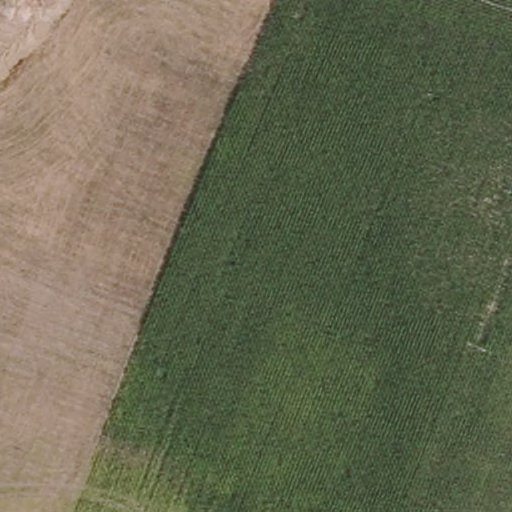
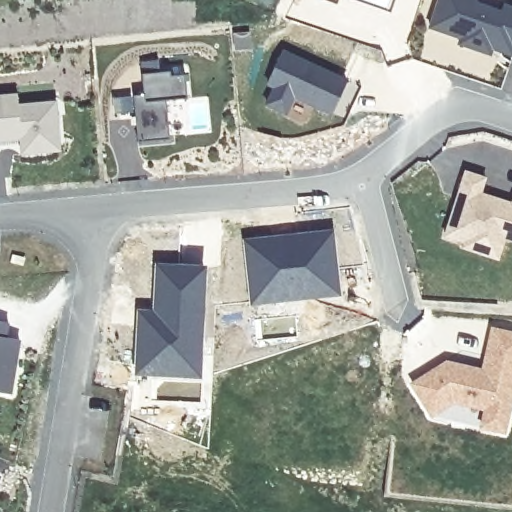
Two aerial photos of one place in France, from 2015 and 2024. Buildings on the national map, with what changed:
new [(334,2),(327,0),(334,0),(334,2)]
new [(388,10),(362,0),(391,0),(388,10)]
new [(478,52),(456,44),(458,38),(427,27),(436,0),(473,0),(472,4),(499,13),(501,6),(512,10),(512,51),(510,56),(489,49),(487,55),(478,52)]
new [(341,80),(336,92),(332,91),(330,96),(333,98),(326,112),(289,95),(281,112),(263,102),(271,86),(264,83),(279,51),(341,80)]
new [(142,96),(140,62),(156,61),(158,73),(169,72),(170,76),(184,76),(186,99),(165,101),(168,140),(135,142),(131,96),(142,96)]
new [(18,105),(54,102),(58,149),(24,152),(23,137),(0,139),(0,96),(16,94),(18,105)]
new [(441,236),(462,172),(482,179),(477,194),(508,204),(510,199),(512,200),(512,243),(501,239),(499,243),(494,259),(459,247),(461,242),(441,236)]
new [(334,227),(341,295),(250,305),(242,237),(334,227)]
new [(136,307),(151,307),(154,261),(207,263),(202,378),(134,374),(136,307)]
new [(3,338),(17,341),(8,395),(0,393),(0,322),(6,323),(3,338)]
new [(438,367),(448,368),(457,363),(483,370),(493,327),(512,332),(512,395),(504,431),(482,426),(486,407),(453,401),(432,413),(412,382),(438,367)]

